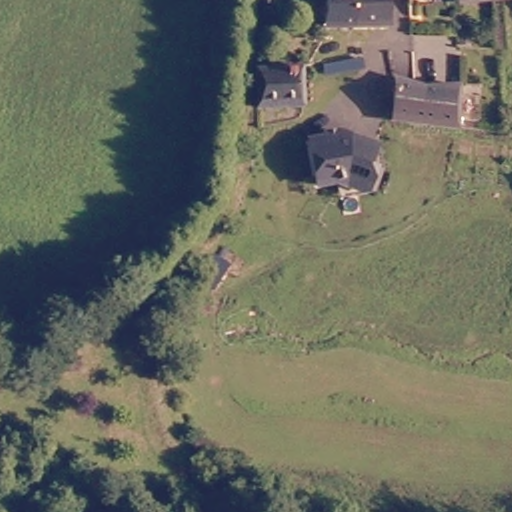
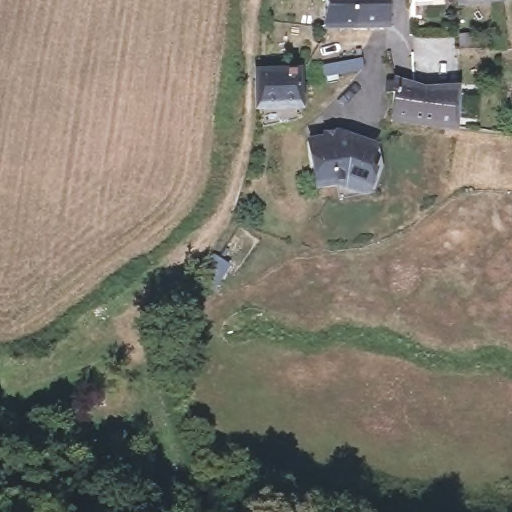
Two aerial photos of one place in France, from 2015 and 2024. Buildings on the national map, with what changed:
unchanged [(331,27),(331,0),(395,0),(395,26),(331,27)]
unchanged [(265,105),(264,67),(308,67),(311,104),(265,105)]
unchanged [(425,86),(429,86),(430,88),(466,87),(465,126),(402,116),(401,87),(394,87),(394,79),(400,79),(401,76),(425,86)]
unchanged [(378,166),(372,187),(336,195),(332,180),(314,184),(304,139),(319,136),(319,132),(331,130),(370,141),(373,142),(378,166)]
unchanged [(215,278),(232,254),(246,263),(229,288),(215,278)]

